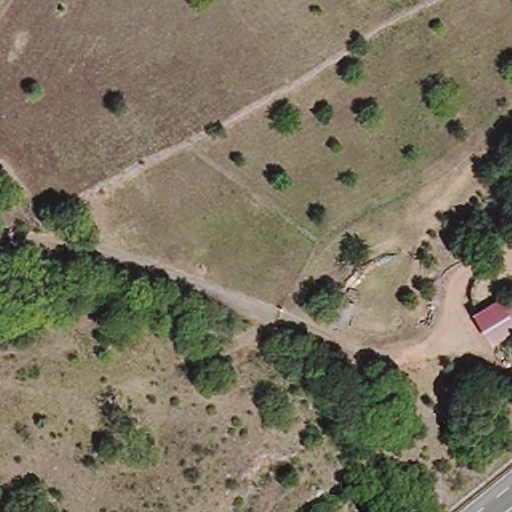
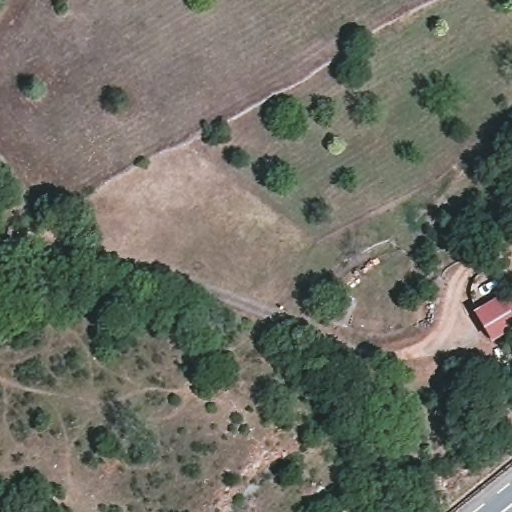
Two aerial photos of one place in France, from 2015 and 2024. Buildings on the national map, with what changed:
unchanged [(477,319),(512,297),(512,324),(488,340),(477,319)]

